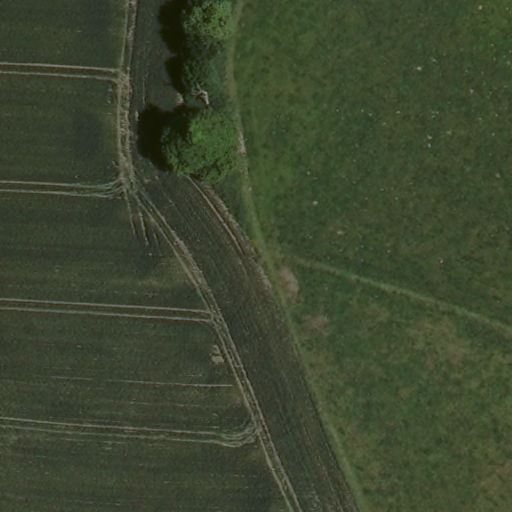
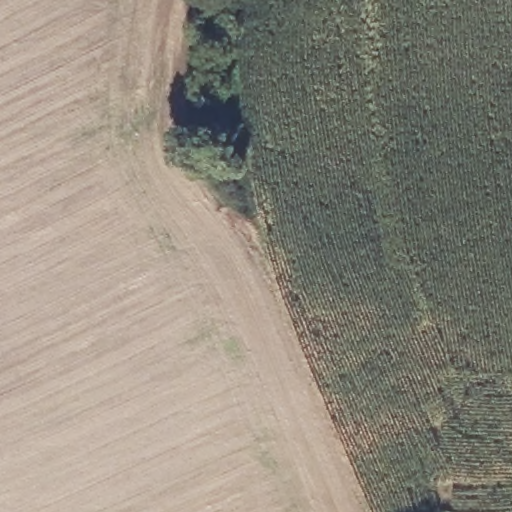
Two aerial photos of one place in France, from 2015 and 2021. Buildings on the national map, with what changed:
[]

